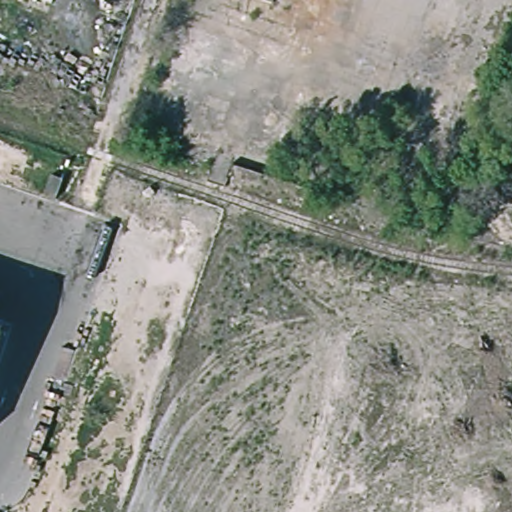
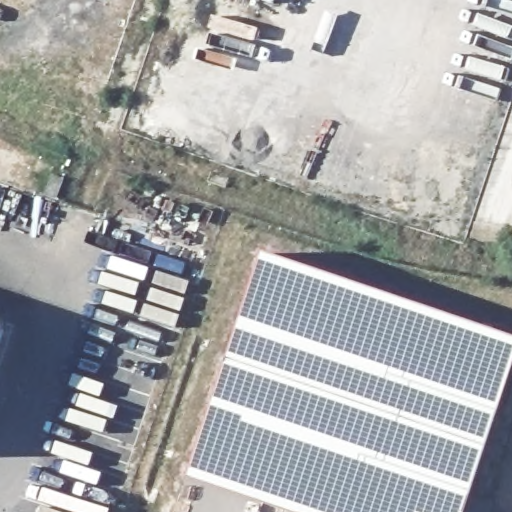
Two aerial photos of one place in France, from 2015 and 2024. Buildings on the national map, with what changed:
unchanged [(279,6),(261,0),(280,0),(279,6)]
unchanged [(42,207),(50,184),(62,189),(54,211),(42,207)]
new [(512,372),(464,512),(294,512),(189,477),(265,255),(512,340),(512,372)]
unchanged [(3,329),(0,337),(0,328),(3,329)]

